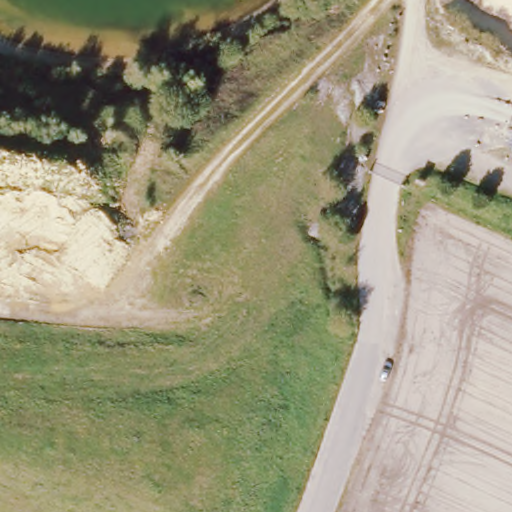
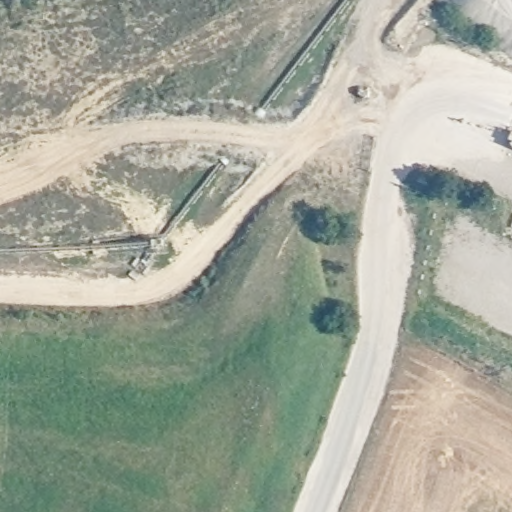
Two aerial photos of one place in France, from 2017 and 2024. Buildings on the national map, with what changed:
unchanged [(512,138),(512,154),(502,149),(508,136),(512,138)]

